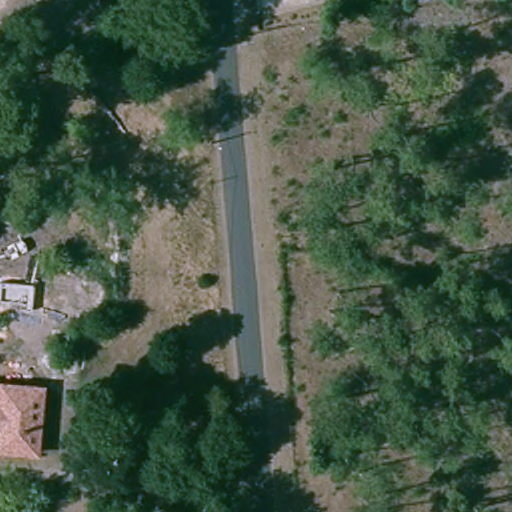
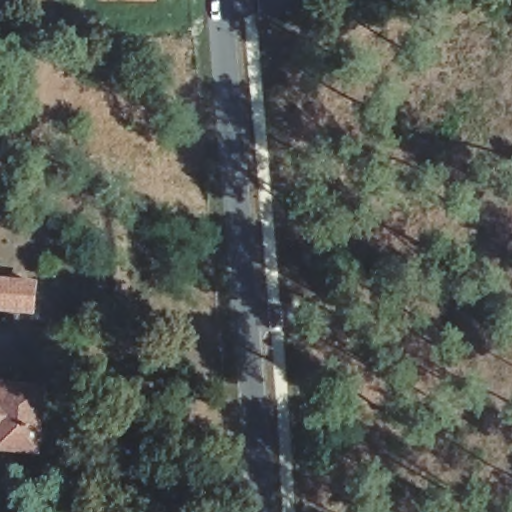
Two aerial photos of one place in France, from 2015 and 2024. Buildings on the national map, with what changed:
new [(160,1),(96,1),(96,0),(159,0),(160,1)]
new [(36,316),(0,313),(0,277),(39,282),(36,316)]
demolished [(40,325),(20,324),(21,297),(42,299),(40,325)]
unchanged [(44,389),(40,455),(0,453),(0,388),(4,388),(44,389)]

